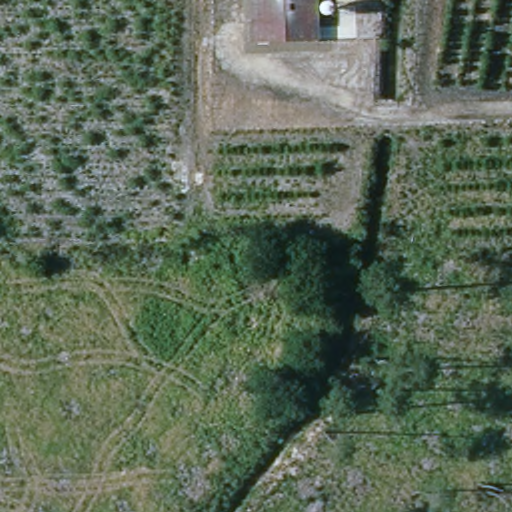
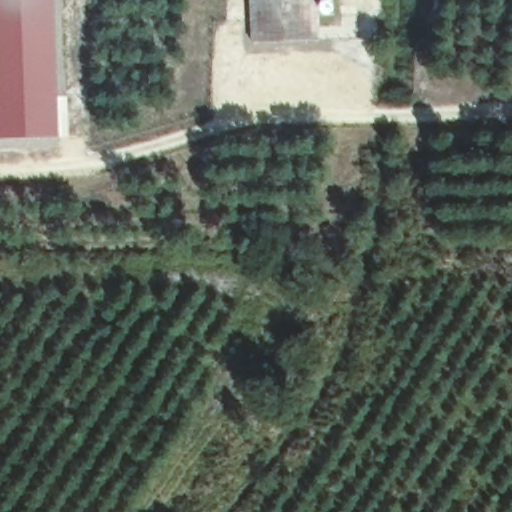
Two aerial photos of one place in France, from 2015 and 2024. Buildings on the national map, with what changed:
new [(0,138),(0,0),(55,0),(59,136),(0,138)]
unchanged [(253,45),(252,0),(318,0),(318,45),(253,45)]

